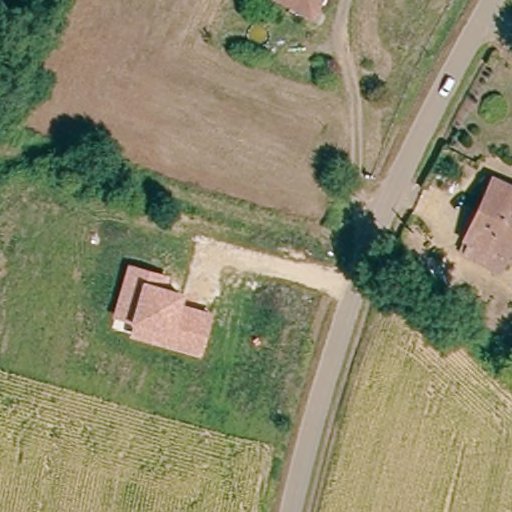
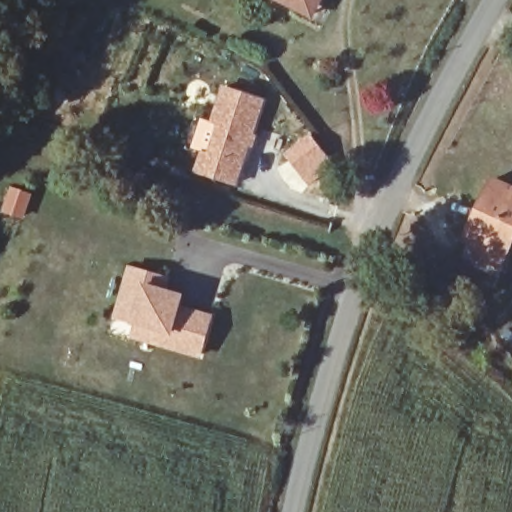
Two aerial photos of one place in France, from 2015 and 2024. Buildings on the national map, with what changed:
unchanged [(281,0),(295,0),(292,6),(281,0)]
unchanged [(300,0),(319,0),(316,7),(300,0)]
new [(267,99),(239,186),(194,172),(201,150),(208,152),(217,124),(210,120),(223,85),(267,99)]
unchanged [(478,215),(495,177),(512,185),(512,249),(502,270),(469,255),(476,240),(468,236),(478,215)]
unchanged [(172,276),(170,290),(185,294),(183,305),(214,315),(202,359),(129,338),(134,323),(114,317),(129,264),(172,276)]

